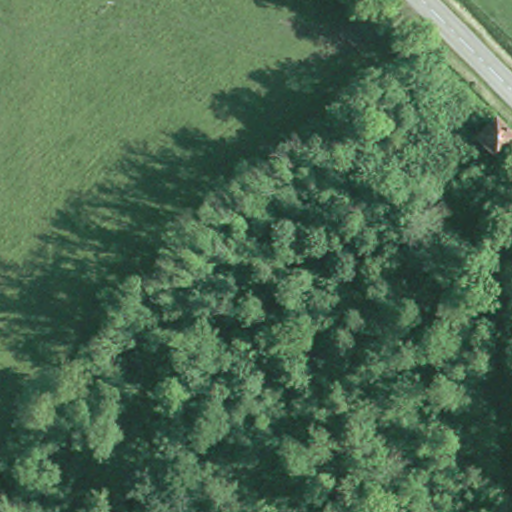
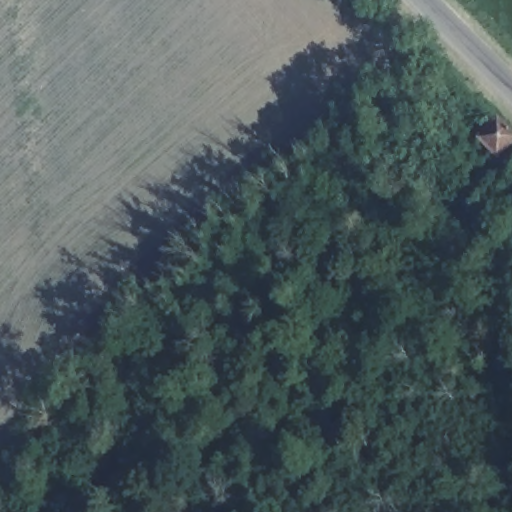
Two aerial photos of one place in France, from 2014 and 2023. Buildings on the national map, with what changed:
unchanged [(488,114),(503,128),(509,122),(512,125),(512,163),(511,164),(506,159),(490,173),(475,158),(483,149),(468,135),(483,119),(488,114)]

